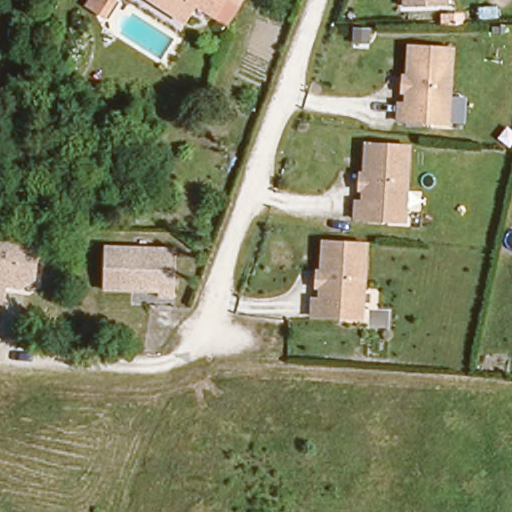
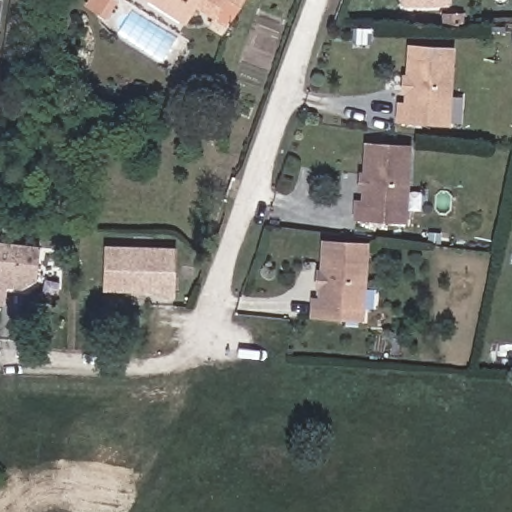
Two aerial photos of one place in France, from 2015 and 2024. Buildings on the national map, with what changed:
unchanged [(195,13),(171,0),(203,0),(195,13)]
unchanged [(234,11),(222,4),(215,0),(240,0),(234,11)]
unchanged [(401,2),(401,0),(447,0),(447,2),(401,2)]
unchanged [(398,120),(403,41),(451,46),(449,123),(398,120)]
unchanged [(356,219),(361,140),(408,143),(405,224),(356,219)]
unchanged [(364,319),(313,316),(317,238),(370,242),(364,319)]
unchanged [(40,244),(37,278),(25,288),(10,286),(6,305),(0,304),(0,240),(40,244)]
unchanged [(174,292),(101,292),(101,243),(174,245),(174,292)]

